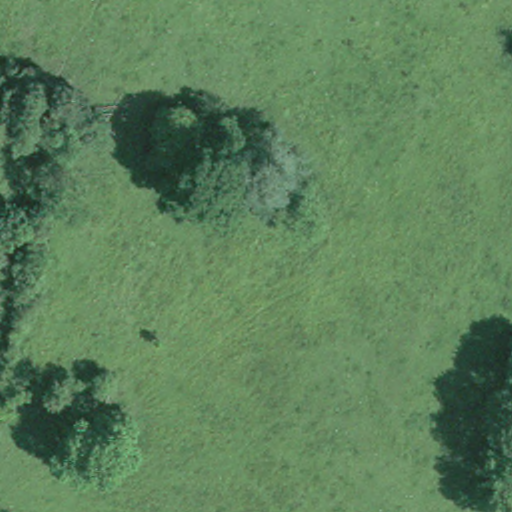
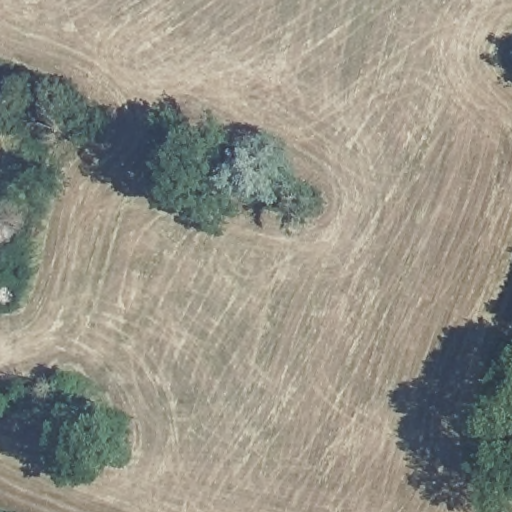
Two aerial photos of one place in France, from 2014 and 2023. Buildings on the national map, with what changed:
unchanged [(503,490),(498,481),(512,474),(512,485),(506,488),(503,490)]

